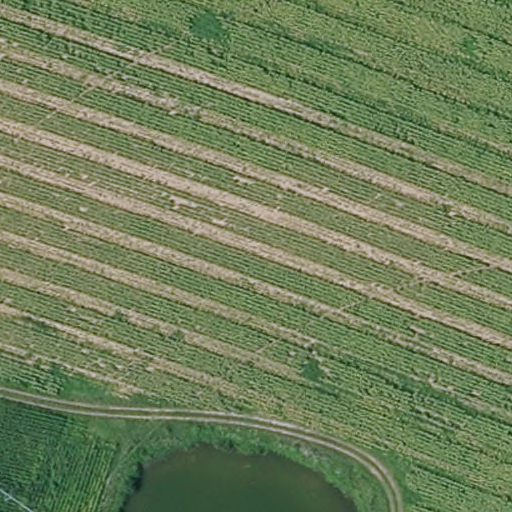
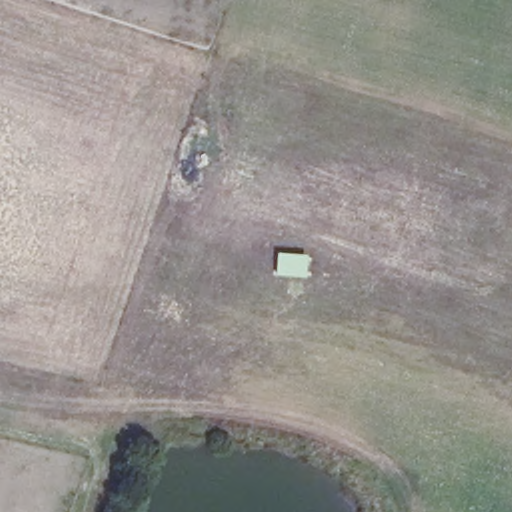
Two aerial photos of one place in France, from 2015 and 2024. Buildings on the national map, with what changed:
[]

